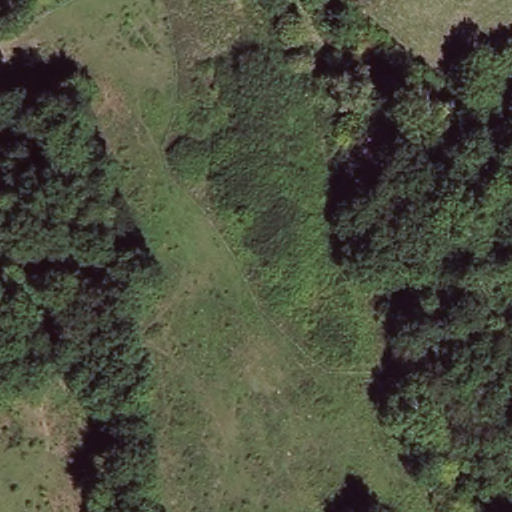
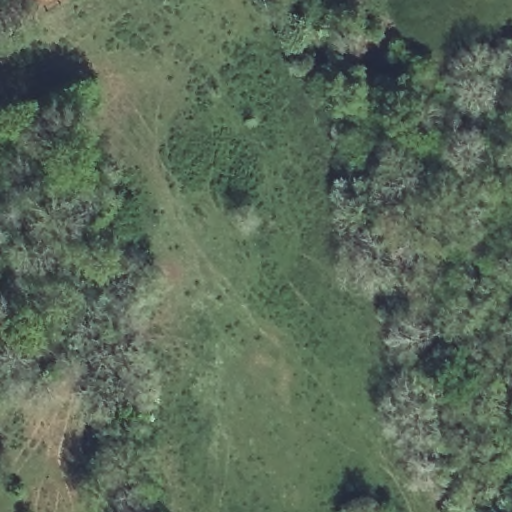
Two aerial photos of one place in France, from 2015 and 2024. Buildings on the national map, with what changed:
unchanged [(101,325),(86,327),(85,310),(99,307),(101,325)]

